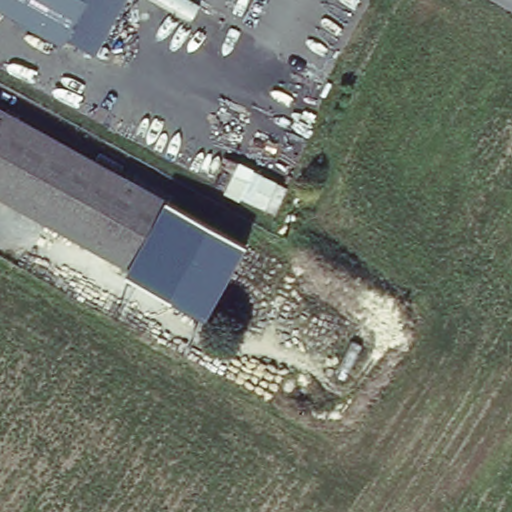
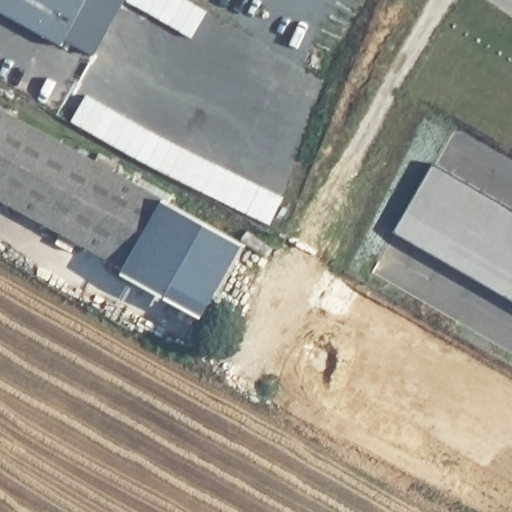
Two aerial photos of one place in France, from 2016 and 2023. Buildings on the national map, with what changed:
unchanged [(93,63),(0,15),(0,0),(126,0),(93,63)]
unchanged [(167,206),(129,273),(0,202),(0,115),(167,206)]
new [(512,301),(395,234),(436,163),(512,207),(512,301)]
unchanged [(167,206),(256,252),(216,321),(129,273),(167,206)]

